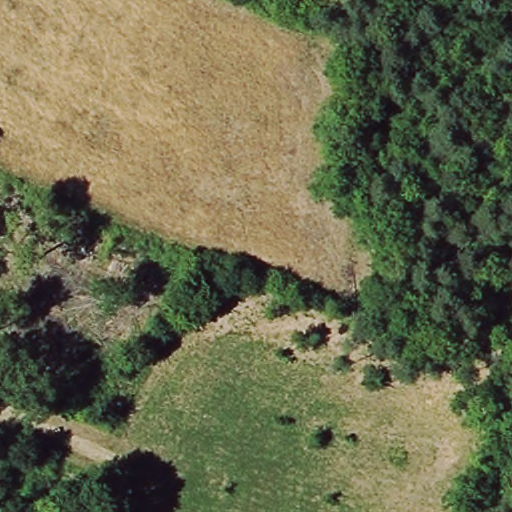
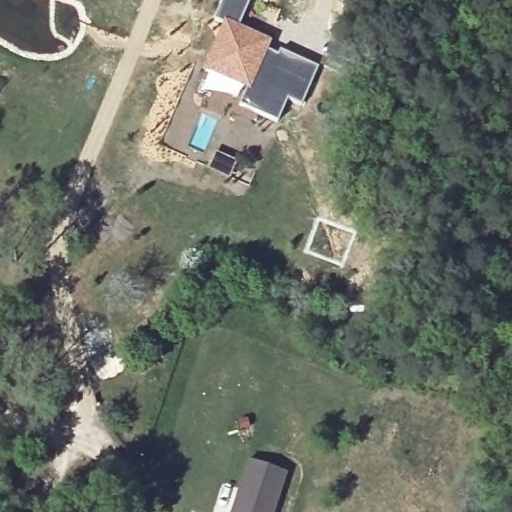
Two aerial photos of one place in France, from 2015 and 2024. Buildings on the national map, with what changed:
new [(214,20),(223,0),(251,0),(239,31),(269,43),(266,50),(279,56),(280,51),(319,67),(304,104),(290,98),(280,121),(242,105),(249,87),(208,70),(226,25),(214,20)]
new [(258,0),(269,0),(268,3),(258,0)]
unchanged [(389,227),(382,244),(359,236),(367,218),(389,227)]
new [(246,458),(288,471),(275,512),(230,512),(246,458)]

